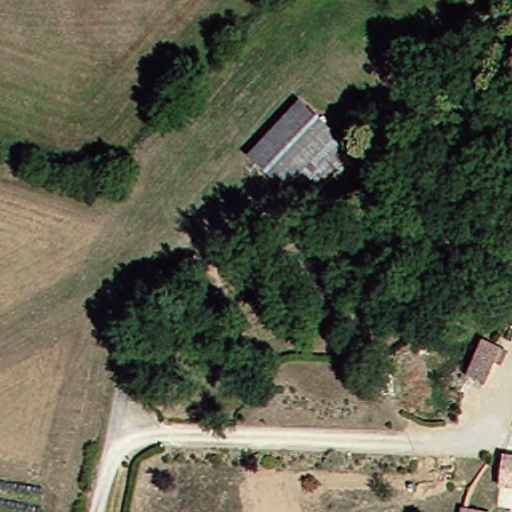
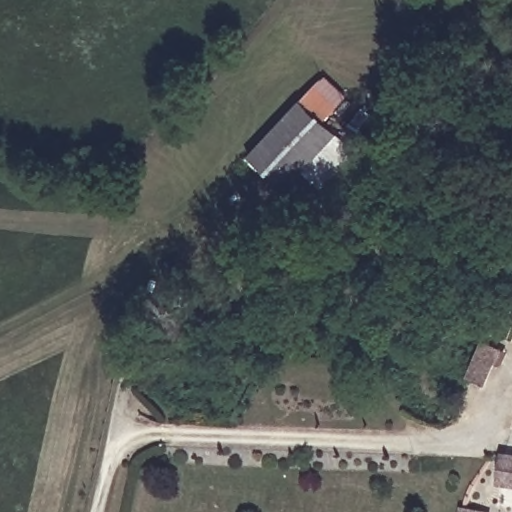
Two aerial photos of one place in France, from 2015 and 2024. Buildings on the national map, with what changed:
unchanged [(297,102),(340,140),(356,154),(322,195),(310,210),(285,193),(244,158),(297,102)]
unchanged [(512,286),(512,324),(499,320),(512,285),(512,286)]
unchanged [(502,346),(482,382),(465,371),(484,337),(502,346)]
unchanged [(500,487),(502,462),(512,463),(512,490),(500,487)]
unchanged [(464,512),(465,507),(496,512),(464,512)]

